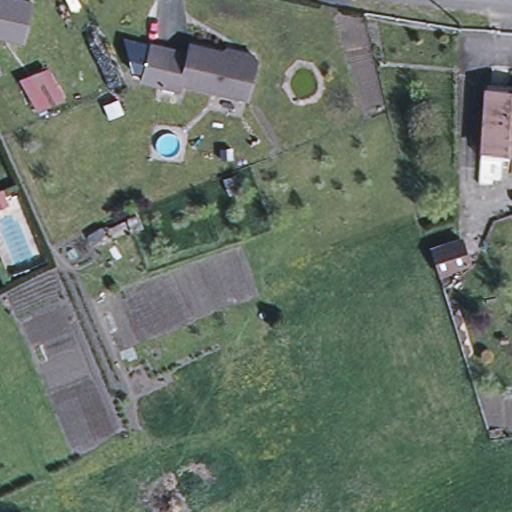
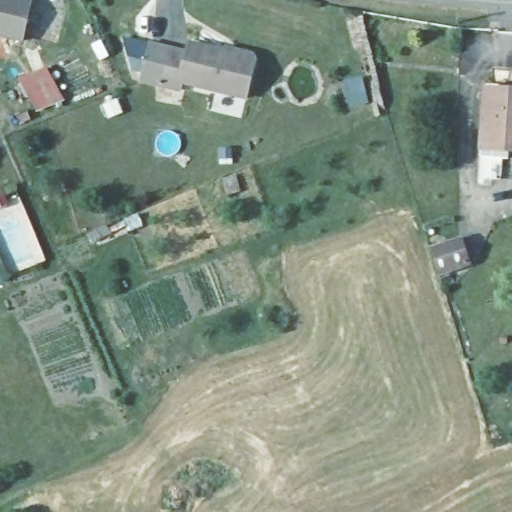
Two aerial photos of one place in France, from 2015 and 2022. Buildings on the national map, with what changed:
unchanged [(30,3),(21,42),(0,38),(0,0),(17,0),(30,3)]
unchanged [(232,52),(237,48),(251,52),(255,57),(245,97),(180,81),(178,87),(160,83),(164,69),(169,47),(187,51),(189,41),(216,48),(232,52)]
unchanged [(42,70),(56,103),(33,113),(18,80),(42,70)]
unchanged [(481,152),(485,92),(512,93),(512,154),(505,154),(505,162),(480,161),(481,152)]
unchanged [(459,242),(467,267),(437,277),(429,252),(459,242)]

